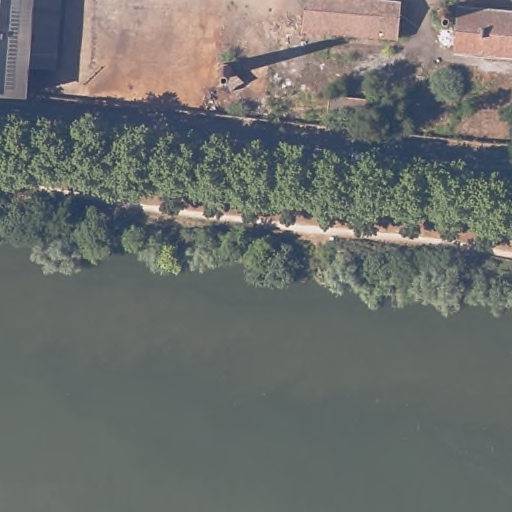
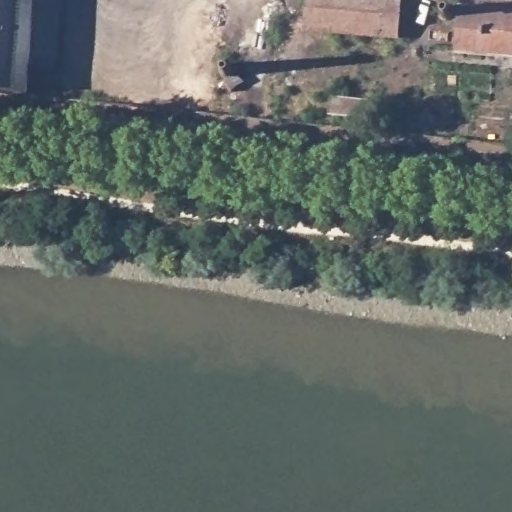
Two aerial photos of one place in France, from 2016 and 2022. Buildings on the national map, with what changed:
unchanged [(20,63),(17,91),(0,89),(0,0),(57,0),(50,66),(20,63)]
unchanged [(339,0),(398,4),(395,41),(317,35),(319,0),(339,0)]
unchanged [(458,9),(512,13),(512,59),(455,54),(458,9)]
unchanged [(342,99),(381,103),(380,120),(340,116),(342,99)]

